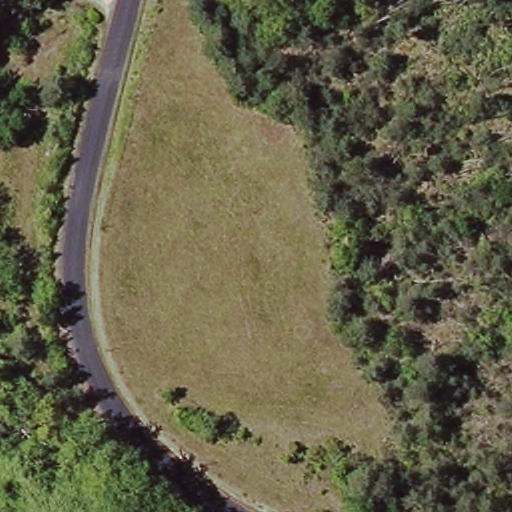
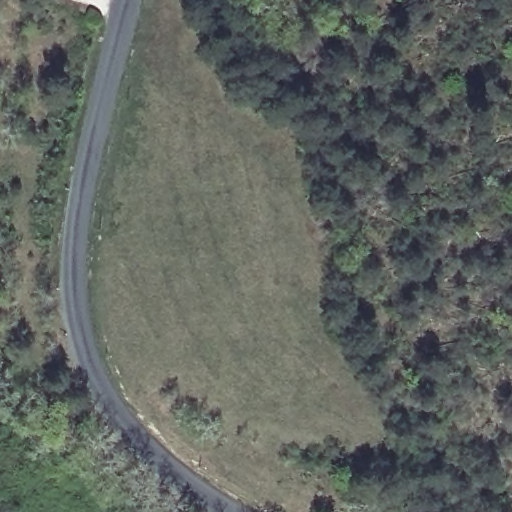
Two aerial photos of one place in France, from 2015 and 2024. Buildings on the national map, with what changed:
[]

